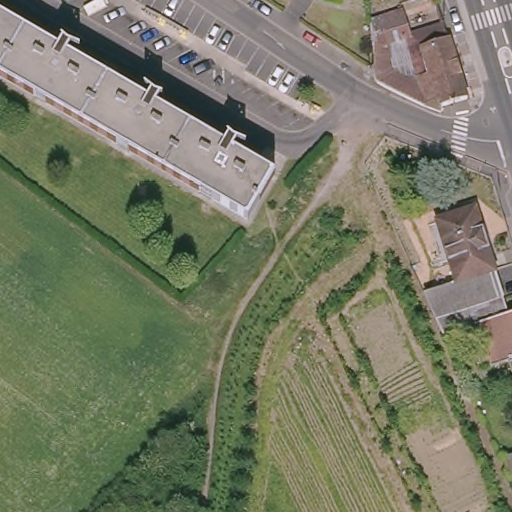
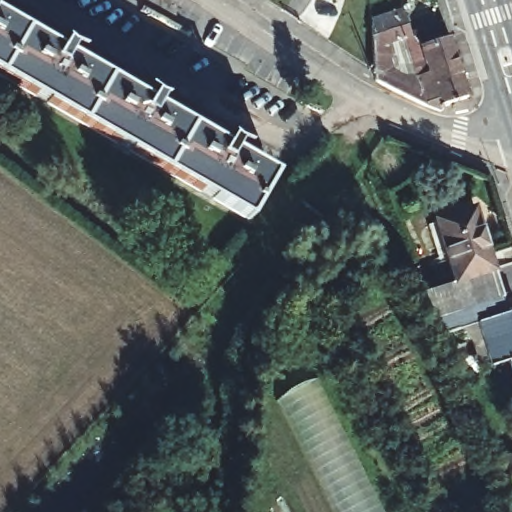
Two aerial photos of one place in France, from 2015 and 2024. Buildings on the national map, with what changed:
unchanged [(400,10),(405,29),(438,19),(464,100),(442,106),(438,114),(370,80),(370,70),(368,20),(400,10)]
unchanged [(240,148),(238,156),(270,175),(244,221),(0,77),(0,17),(55,50),(62,41),(67,46),(76,50),(73,60),(139,99),(146,91),(152,96),(159,99),(155,107),(223,148),(228,140),(233,145),(240,148)]
unchanged [(455,281),(435,220),(472,208),(503,298),(433,321),(420,293),(455,281)]
unchanged [(508,313),(512,312),(512,366),(511,362),(492,370),(488,362),(477,365),(472,348),(458,331),(440,337),(433,321),(503,298),(508,313)]
new [(386,512),(333,512),(277,399),(317,377),(386,512)]
unchanged [(502,455),(512,452),(512,476),(509,476),(502,455)]

